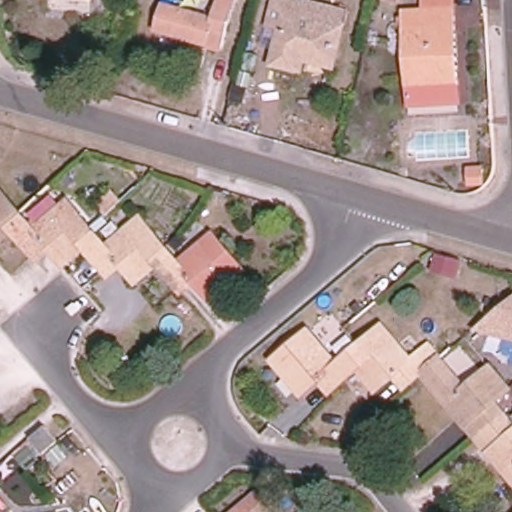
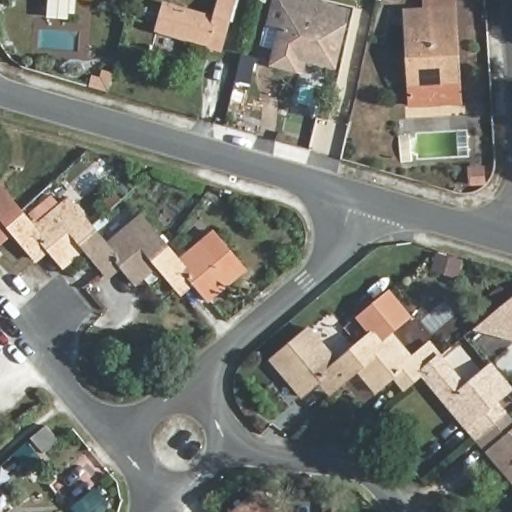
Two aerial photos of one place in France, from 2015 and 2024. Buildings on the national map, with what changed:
unchanged [(164,6),(214,20),(220,0),(233,4),(222,41),(209,37),(207,44),(157,30),(164,6)]
unchanged [(271,23),(277,0),(296,0),(346,12),(333,66),(305,59),(295,56),(292,68),(275,63),(284,27),(271,23)]
unchanged [(409,2),(397,0),(410,0),(409,2)]
unchanged [(405,12),(425,11),(425,0),(454,0),(455,9),(460,103),(411,106),(405,12)]
unchanged [(480,170),(481,179),(470,180),(470,170),(480,170)]
unchanged [(7,220),(15,230),(0,242),(0,185),(17,206),(20,209),(8,219),(7,220)]
unchanged [(66,265),(61,259),(46,241),(34,252),(15,230),(7,220),(8,219),(20,209),(33,225),(67,195),(89,222),(92,226),(80,237),(88,246),(67,264),(66,265)]
unchanged [(139,282),(119,258),(106,269),(88,246),(80,237),(92,226),(105,241),(140,212),(162,239),(165,243),(152,253),(161,263),(139,282)]
unchanged [(179,285),(161,263),(152,253),(165,243),(178,258),(212,229),(237,259),(224,269),(233,279),(211,298),(192,274),(179,285)]
new [(388,289),(411,316),(392,333),(386,326),(372,337),(355,317),(388,289)]
unchanged [(470,332),(512,300),(512,344),(470,332)]
unchanged [(359,348),(372,337),(386,326),(392,333),(415,361),(430,348),(441,360),(423,375),(422,376),(409,388),(398,375),(374,394),(357,372),(366,364),(361,358),(355,352),(359,348)]
unchanged [(301,399),(283,377),(292,369),(281,356),(311,330),(340,365),(355,352),(361,358),(366,364),(357,372),(343,384),(335,392),(324,379),(301,399)]
unchanged [(465,390),(491,368),(510,391),(495,404),(506,418),(478,441),(467,428),(475,421),(467,412),(459,418),(423,375),(441,360),(465,390)]
unchanged [(512,425),(512,481),(498,464),(505,458),(497,448),(490,454),(478,441),(506,418),(510,422),(512,425)]
unchanged [(46,427),(59,443),(44,456),(33,442),(31,440),(46,427)]
unchanged [(271,512),(266,512),(269,509),(271,512)]
unchanged [(249,512),(246,512),(247,510),(249,512)]

